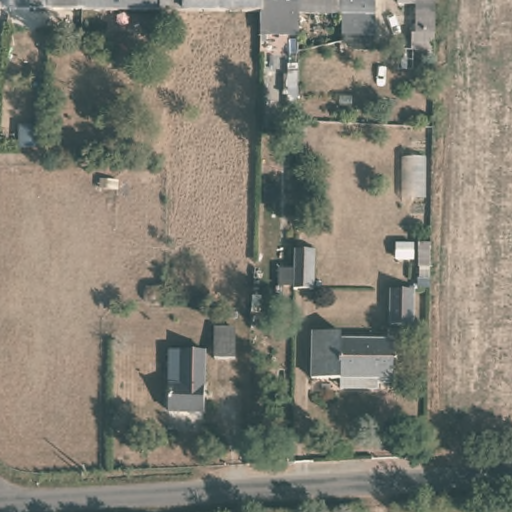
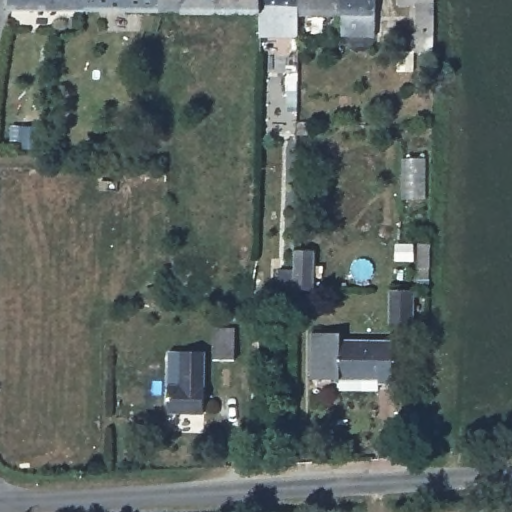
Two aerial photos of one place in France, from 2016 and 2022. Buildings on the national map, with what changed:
unchanged [(13,8),(13,0),(87,0),(86,10),(13,8)]
unchanged [(222,12),(191,12),(188,12),(165,11),(86,10),(87,0),(223,0),(222,12)]
unchanged [(222,12),(223,0),(266,0),(266,11),(266,13),(222,12)]
unchanged [(303,14),(305,14),(305,36),(304,36),(267,34),(267,13),(266,13),(266,11),(266,0),(303,0),(303,14)]
unchanged [(347,14),(305,14),(303,14),(303,0),(348,0),(347,14)]
unchanged [(381,15),(347,14),(348,0),(381,0),(381,15)]
unchanged [(417,26),(417,0),(434,0),(433,27),(417,26)]
unchanged [(313,250),(312,289),(295,288),(296,250),(313,250)]
unchanged [(414,290),(413,324),(392,324),(392,290),(414,290)]
unchanged [(236,358),(216,358),(216,328),(236,328),(236,358)]
unchanged [(343,331),(343,339),(394,339),(393,381),(310,379),(311,330),(343,331)]
unchanged [(170,382),(182,383),(183,348),(206,348),(205,408),(170,407),(170,382)]

